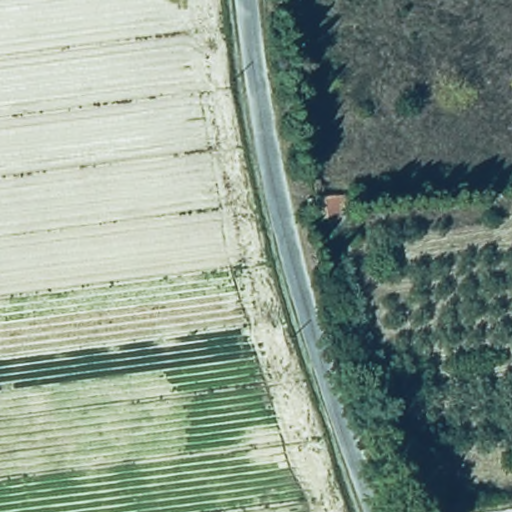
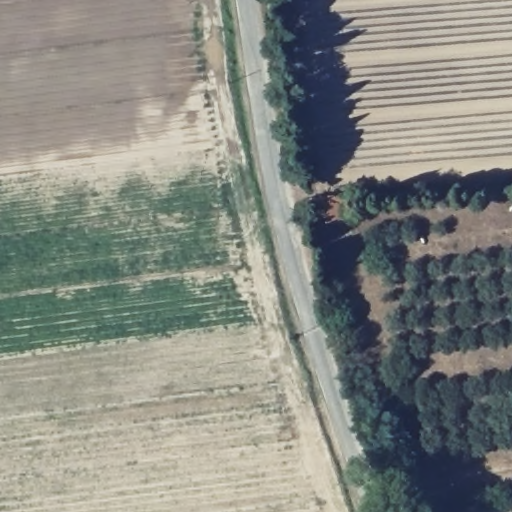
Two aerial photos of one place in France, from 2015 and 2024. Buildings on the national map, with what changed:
unchanged [(339,222),(309,226),(305,203),(335,199),(339,222)]

